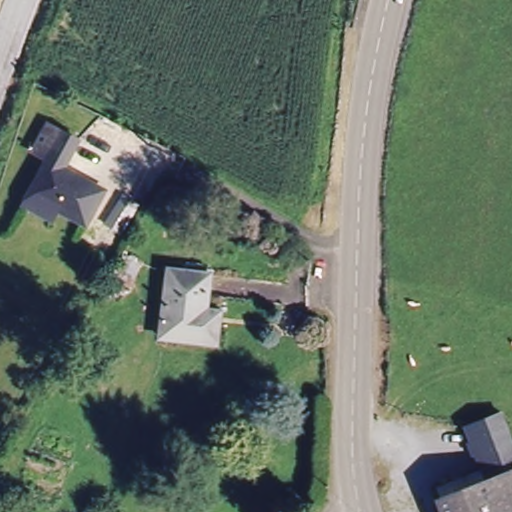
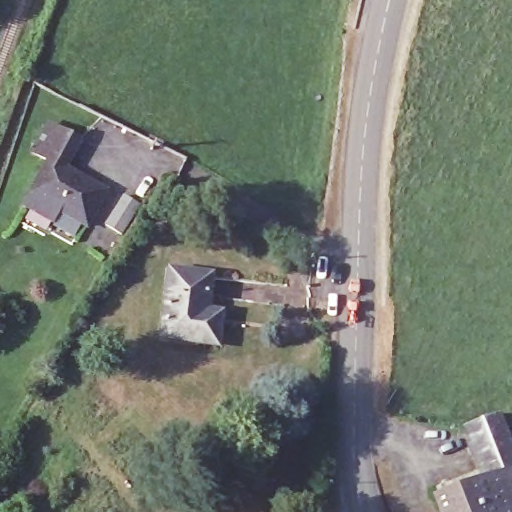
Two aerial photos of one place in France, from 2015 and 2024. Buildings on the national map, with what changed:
unchanged [(20,207),(27,195),(46,161),(30,153),(46,124),(78,143),(63,169),(103,194),(84,229),(58,213),(50,225),(20,207)]
unchanged [(217,352),(201,350),(160,345),(169,273),(211,280),(206,316),(221,320),(217,352)]
unchanged [(435,508),(429,494),(472,476),(480,490),(484,488),(462,433),(466,430),(493,417),(507,455),(512,467),(512,477),(509,478),(512,486),(512,512),(437,512),(435,508)]

